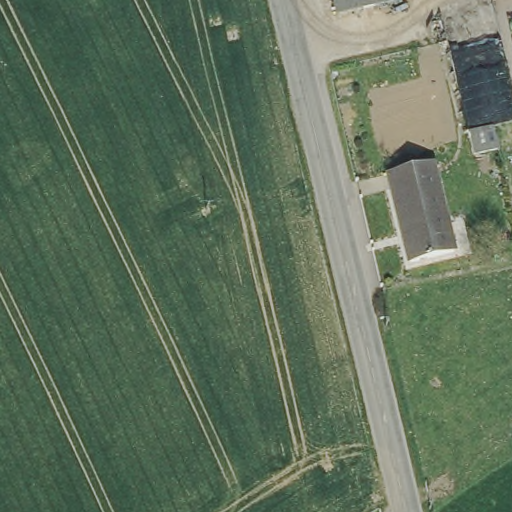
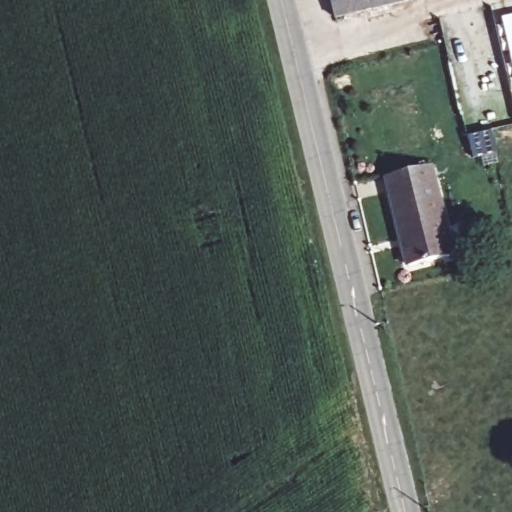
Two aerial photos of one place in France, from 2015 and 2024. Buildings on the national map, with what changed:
unchanged [(417,1),(348,18),(343,0),(416,0),(417,1)]
unchanged [(500,121),(503,163),(470,165),(467,124),(500,121)]
unchanged [(430,167),(452,255),(408,267),(385,179),(430,167)]

